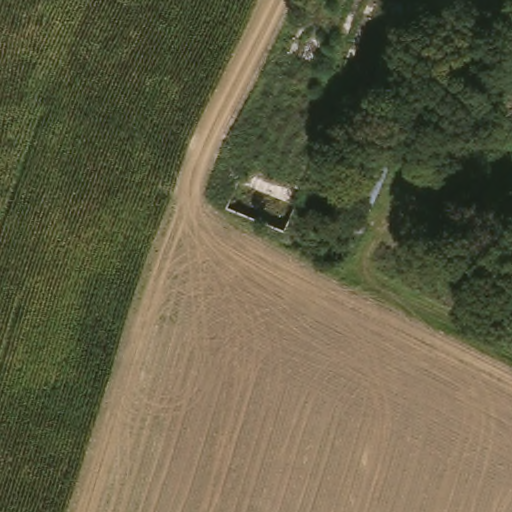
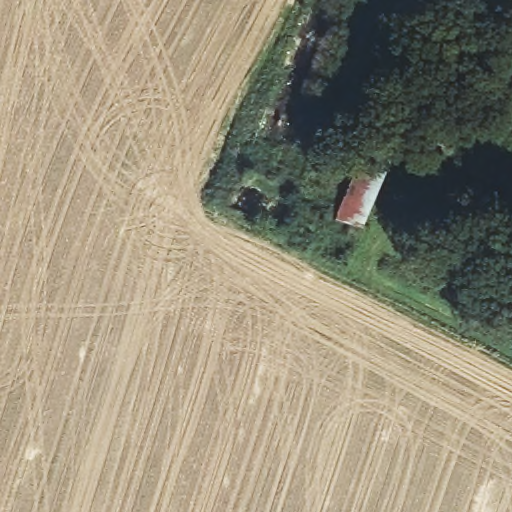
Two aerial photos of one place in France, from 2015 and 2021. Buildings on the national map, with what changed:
unchanged [(335,225),(365,147),(392,160),(361,236),(335,225)]

